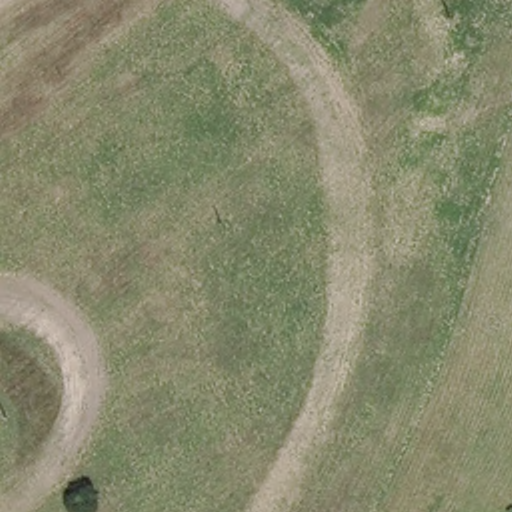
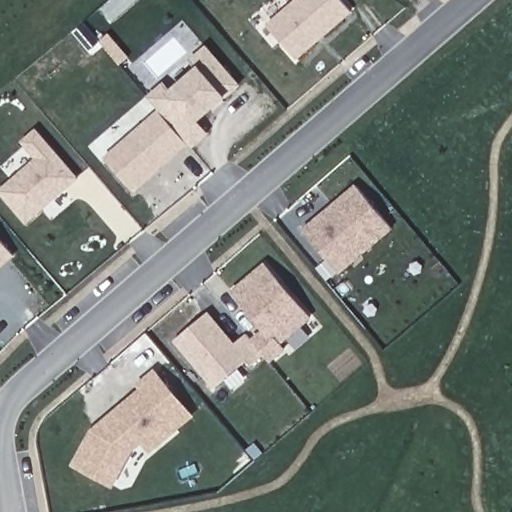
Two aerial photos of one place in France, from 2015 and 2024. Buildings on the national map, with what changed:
new [(294,0),(342,0),(352,12),(296,60),(265,24),(294,0)]
new [(158,110),(147,96),(165,81),(172,87),(198,66),(189,59),(207,44),(241,85),(225,98),(227,100),(215,111),(214,109),(200,122),(210,132),(194,149),(188,143),(134,192),(102,157),(158,110)]
new [(20,141),(37,127),(79,179),(26,225),(0,195),(0,189),(34,159),(20,141)]
new [(355,184),(393,229),(340,274),(301,229),(355,184)]
new [(0,270),(0,239),(15,257),(0,270)]
new [(209,311),(235,342),(246,333),(251,338),(261,330),(230,291),(263,263),(313,319),(283,343),(287,349),(271,363),(263,355),(251,366),(246,360),(213,389),(174,341),(209,311)]
new [(90,429),(139,389),(135,384),(155,368),(196,416),(150,454),(140,444),(133,452),(114,489),(71,466),(90,429)]

